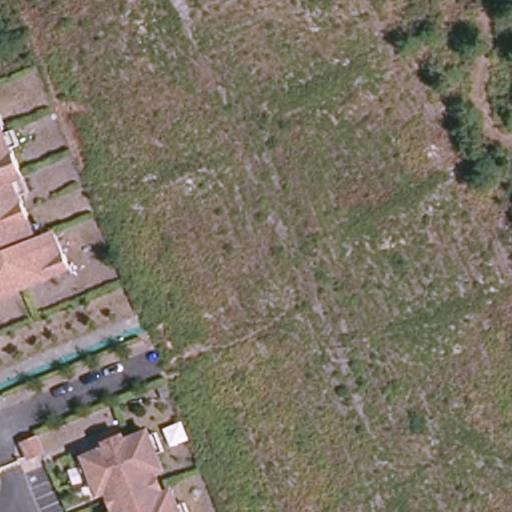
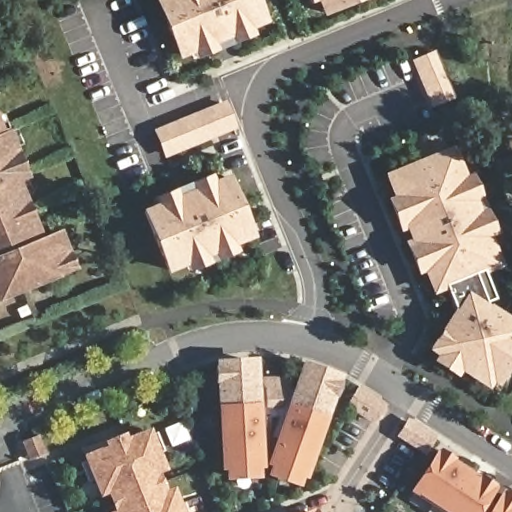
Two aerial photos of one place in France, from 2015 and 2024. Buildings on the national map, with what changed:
new [(251,28),(254,35),(196,58),(193,52),(177,58),(153,0),(257,0),(267,22),(251,28)]
new [(322,15),(316,0),(310,3),(308,0),(360,0),(322,15)]
new [(453,98),(431,107),(410,59),(433,49),(453,98)]
new [(164,157),(152,129),(225,99),(236,127),(164,157)]
unchanged [(10,129),(30,181),(19,186),(40,237),(57,229),(72,267),(59,273),(62,280),(0,301),(0,131),(1,133),(10,129)]
new [(490,382),(486,388),(458,371),(456,376),(431,359),(434,354),(427,349),(452,308),(445,288),(432,294),(422,271),(417,273),(403,239),(408,237),(405,229),(399,231),(386,197),(391,195),(382,172),(452,144),(465,173),(471,171),(496,233),(491,236),(502,264),(482,273),(492,298),(483,301),(512,319),(512,361),(496,386),(490,382)]
new [(237,244),(239,250),(188,270),(186,265),(167,272),(140,208),(155,203),(152,196),(211,173),(213,179),(227,173),(255,237),(237,244)]
new [(223,479),(223,470),(219,469),(214,358),(257,356),(257,376),(261,442),(262,467),(257,468),(258,477),(223,479)]
new [(265,475),(268,466),(265,464),(272,442),(296,375),(301,359),(342,373),(305,478),(300,477),(297,486),(265,475)]
new [(272,442),(261,442),(257,376),(296,375),(272,442)]
new [(355,389),(380,404),(377,408),(370,420),(345,404),(352,392),(355,389)]
unchanged [(183,512),(104,512),(83,455),(149,427),(183,512)]
unchanged [(37,435),(45,455),(27,462),(22,443),(37,435)]
new [(435,447),(512,496),(512,512),(441,512),(408,490),(435,447)]
new [(286,512),(265,512),(282,505),(286,512)]
new [(314,512),(297,512),(312,506),(314,512)]

